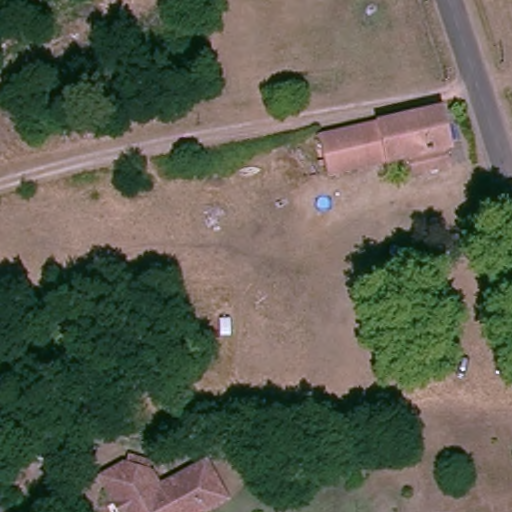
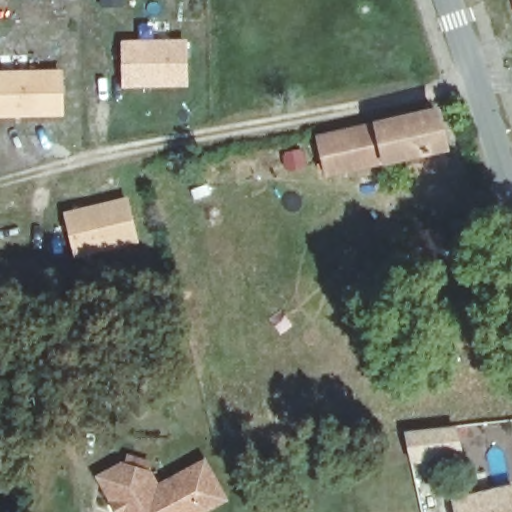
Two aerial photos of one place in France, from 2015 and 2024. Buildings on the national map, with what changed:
new [(99,0),(123,0),(124,7),(99,7),(99,0)]
new [(186,38),(188,86),(120,88),(120,39),(186,38)]
new [(65,116),(0,118),(0,72),(64,71),(65,116)]
unchanged [(330,176),(323,137),(433,110),(446,166),(411,175),(406,158),(330,176)]
new [(140,243),(75,258),(64,212),(127,197),(140,243)]
new [(410,463),(405,432),(457,427),(463,458),(410,463)]
unchanged [(106,488),(97,474),(113,464),(142,474),(140,487),(140,489),(195,457),(215,489),(196,501),(199,505),(189,512),(114,512),(101,491),(106,488)]
new [(512,486),(512,512),(455,512),(452,500),(512,486)]

